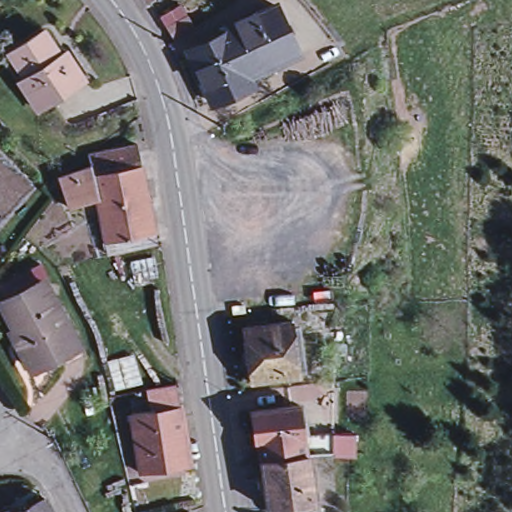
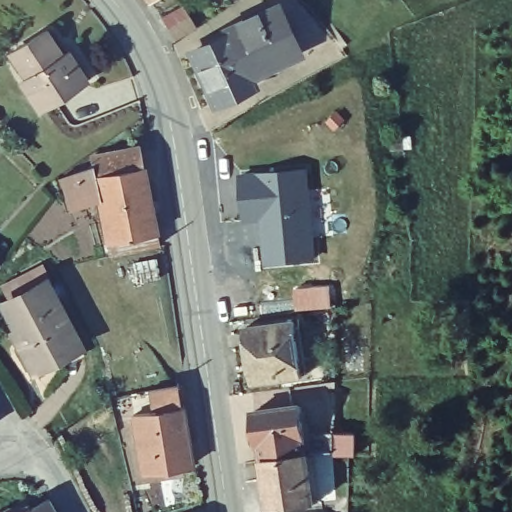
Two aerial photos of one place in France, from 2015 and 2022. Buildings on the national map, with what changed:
unchanged [(225,23),(276,0),(279,0),(301,49),(252,70),(234,27),(228,29),(225,23)]
unchanged [(255,77),(210,97),(187,46),(228,29),(234,27),(252,70),(255,77)]
unchanged [(40,36),(57,61),(64,56),(82,84),(37,114),(18,88),(25,83),(8,59),(40,36)]
unchanged [(141,148),(147,182),(98,190),(95,168),(92,156),(141,148)]
unchanged [(111,256),(108,242),(100,199),(69,209),(62,178),(95,168),(98,190),(147,182),(157,232),(160,246),(111,256)]
new [(314,258),(267,263),(262,218),(246,219),(244,205),(240,176),(305,169),(314,258)]
unchanged [(0,258),(0,257),(1,258),(0,258)]
unchanged [(65,364),(59,354),(32,368),(21,346),(25,344),(5,304),(15,299),(7,283),(42,264),(51,279),(46,282),(77,344),(83,354),(65,364)]
unchanged [(295,322),(303,376),(254,384),(246,329),(295,322)]
unchanged [(148,484),(142,444),(139,426),(136,404),(186,396),(189,418),(192,436),(197,476),(148,484)]
unchanged [(261,444),(257,444),(254,412),(301,405),(307,454),(264,461),(261,444)]
unchanged [(352,432),(352,456),(350,456),(334,455),(334,451),(335,432),(352,432)]
unchanged [(307,454),(310,454),(317,503),(271,510),(264,461),(307,454)]
unchanged [(47,494),(57,512),(17,512),(47,494)]
unchanged [(10,509),(11,512),(5,512),(10,509)]

